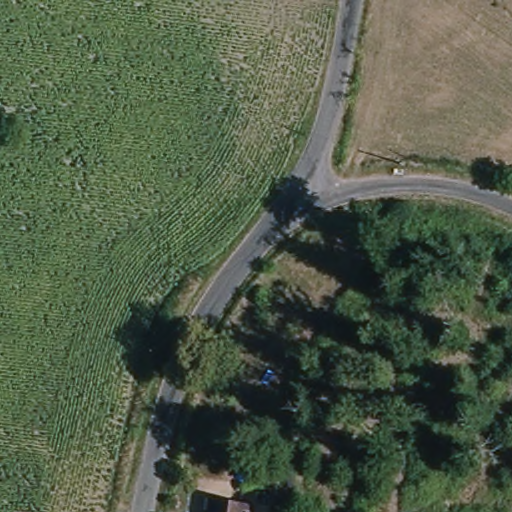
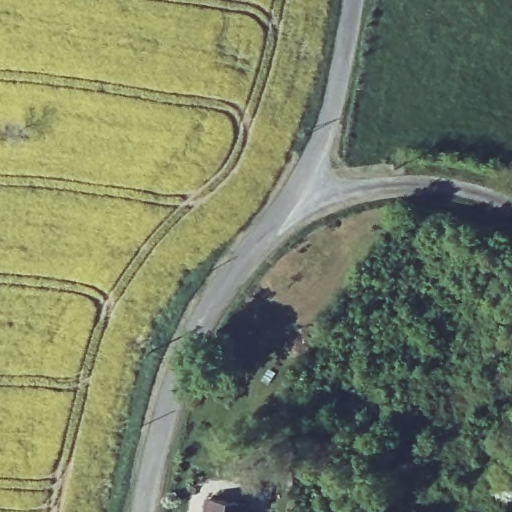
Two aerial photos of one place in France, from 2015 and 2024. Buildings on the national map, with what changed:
unchanged [(207,502),(246,506),(245,512),(206,512),(207,502)]

